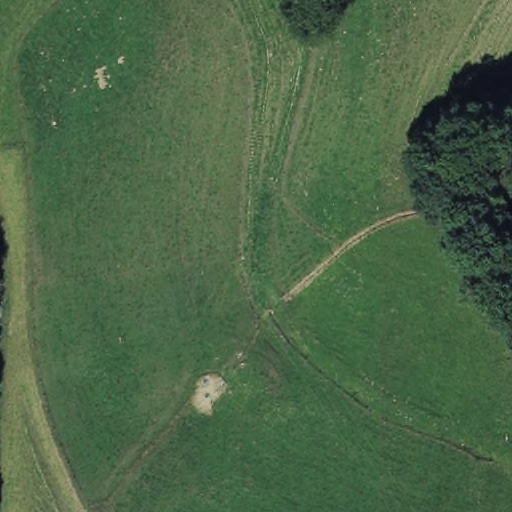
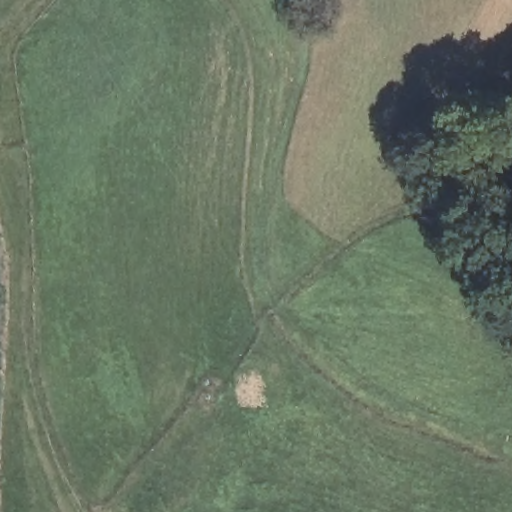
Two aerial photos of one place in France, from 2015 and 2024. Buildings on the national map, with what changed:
[]

